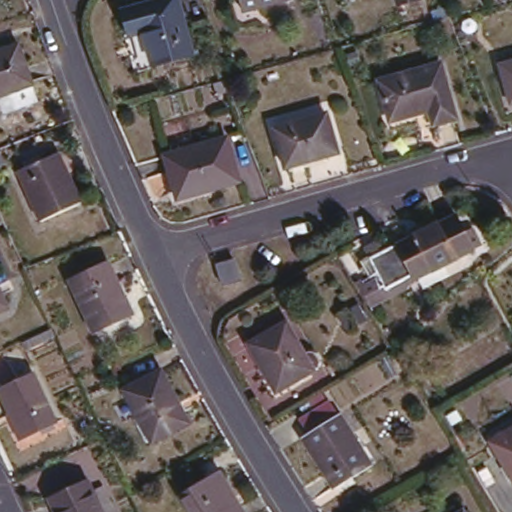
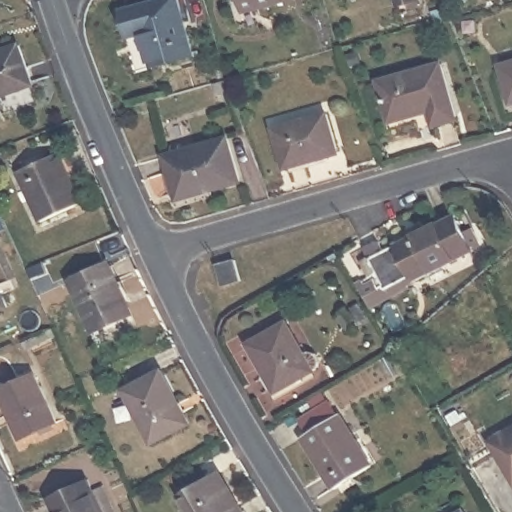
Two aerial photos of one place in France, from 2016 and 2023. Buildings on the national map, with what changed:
unchanged [(173,0),(188,54),(146,65),(138,31),(125,35),(119,9),(154,0),(173,0)]
unchanged [(236,0),(260,0),(238,6),(236,0)]
unchanged [(430,11),(447,6),(449,15),(433,20),(430,11)]
unchanged [(32,77),(0,89),(0,45),(17,39),(32,77)]
unchanged [(512,56),(512,96),(511,96),(501,59),(512,56)]
unchanged [(436,59),(451,112),(428,118),(424,105),(386,115),(374,76),(436,59)]
unchanged [(321,108),(332,146),(282,161),(271,122),(321,108)]
unchanged [(227,137),(239,180),(178,197),(165,154),(227,137)]
unchanged [(53,152),(74,202),(37,219),(14,170),(53,152)]
unchanged [(379,235),(384,244),(454,208),(474,245),(415,275),(412,269),(386,282),(365,242),(379,235)]
unchanged [(0,214),(0,213),(4,220),(0,222),(0,214)]
unchanged [(103,258),(127,307),(91,324),(68,274),(103,258)]
unchanged [(234,258),(240,279),(222,284),(217,264),(234,258)]
unchanged [(0,305),(0,300),(2,304),(0,305)]
unchanged [(286,320),(314,368),(276,391),(249,341),(286,320)]
unchanged [(27,349),(23,340),(53,326),(56,335),(27,349)]
unchanged [(409,346),(418,359),(410,365),(402,351),(409,346)]
unchanged [(156,369),(184,420),(148,441),(120,388),(156,369)]
unchanged [(51,421),(18,438),(0,399),(0,385),(29,372),(51,421)]
unchanged [(299,412),(329,393),(339,408),(371,459),(334,482),(302,431),(308,427),(299,412)]
unchanged [(512,420),(512,480),(511,480),(484,436),(512,420)]
unchanged [(214,472),(239,512),(186,512),(176,495),(214,472)]
unchanged [(88,489),(99,484),(111,512),(52,512),(45,496),(83,478),(88,489)]
unchanged [(458,504),(463,512),(446,512),(458,504)]

